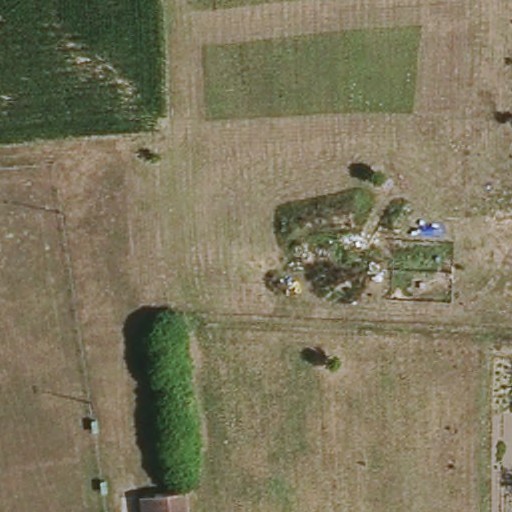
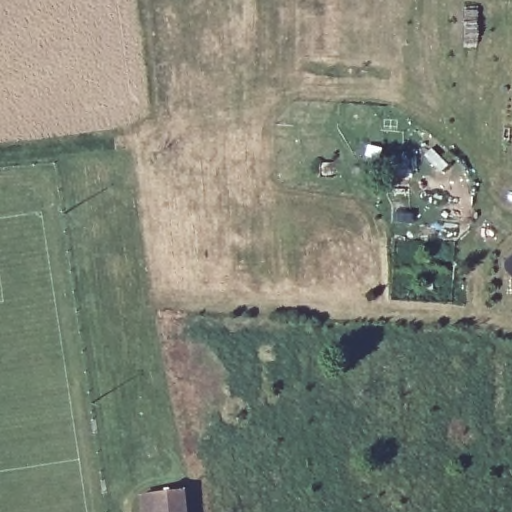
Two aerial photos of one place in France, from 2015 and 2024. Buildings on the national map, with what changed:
unchanged [(189,491),(190,512),(143,512),(142,497),(154,493),(189,491)]

